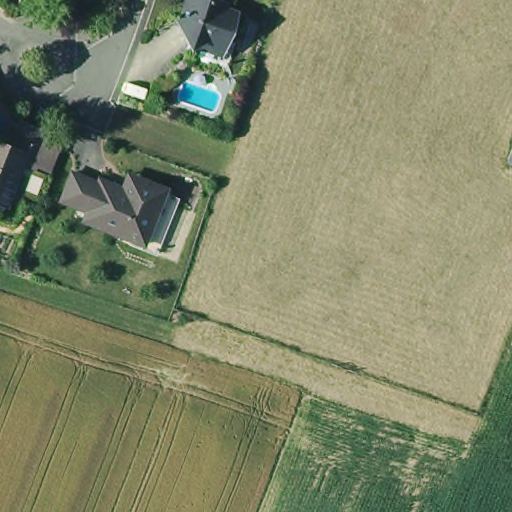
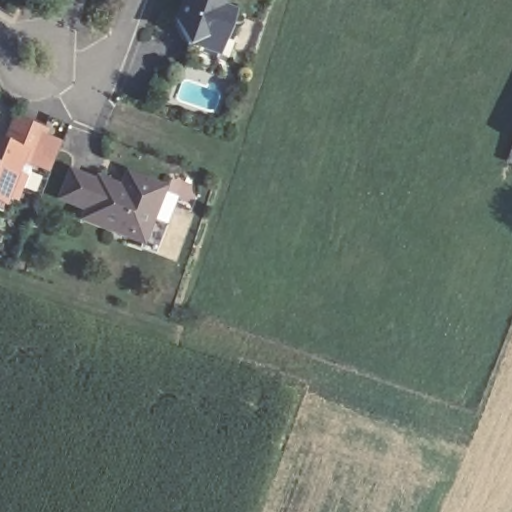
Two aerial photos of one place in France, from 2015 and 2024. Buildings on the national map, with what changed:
unchanged [(191,43),(181,19),(189,0),(222,0),(227,2),(226,7),(238,11),(226,44),(222,55),(191,43)]
unchanged [(0,203),(0,144),(8,147),(18,122),(47,133),(44,139),(59,144),(50,167),(36,162),(34,167),(20,203),(10,199),(9,201),(8,206),(0,203)]
unchanged [(512,152),(512,159),(509,158),(512,152)]
unchanged [(148,242),(87,219),(90,209),(65,199),(75,171),(101,181),(103,177),(126,187),(132,172),(146,177),(169,186),(148,242)]

